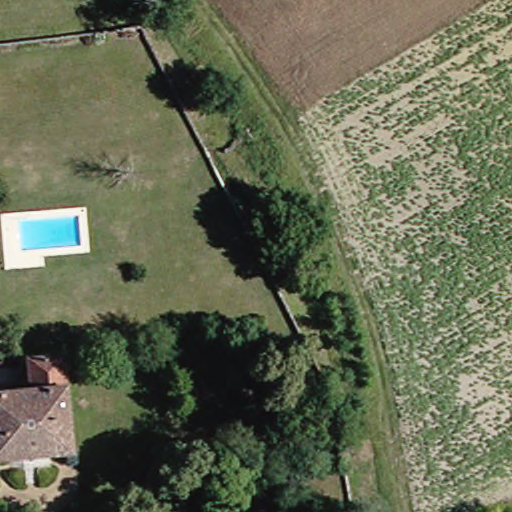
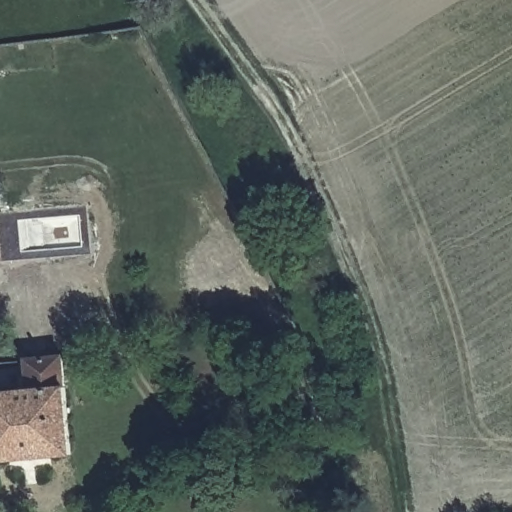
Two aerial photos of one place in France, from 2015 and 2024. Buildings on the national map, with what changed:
unchanged [(74,355),(74,361),(80,450),(61,452),(61,462),(51,463),(50,479),(37,479),(37,466),(25,465),(25,456),(2,456),(0,431),(0,392),(39,388),(37,359),(74,355)]

